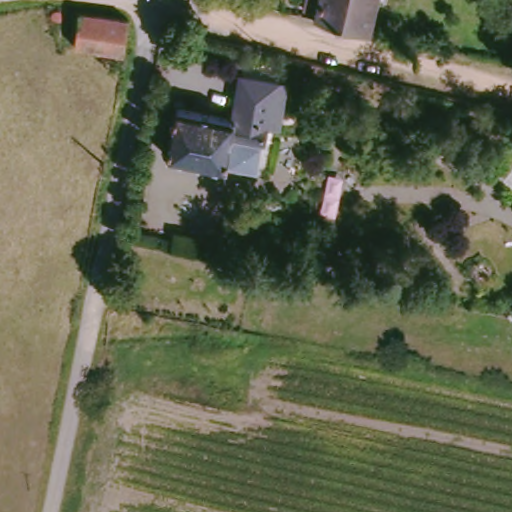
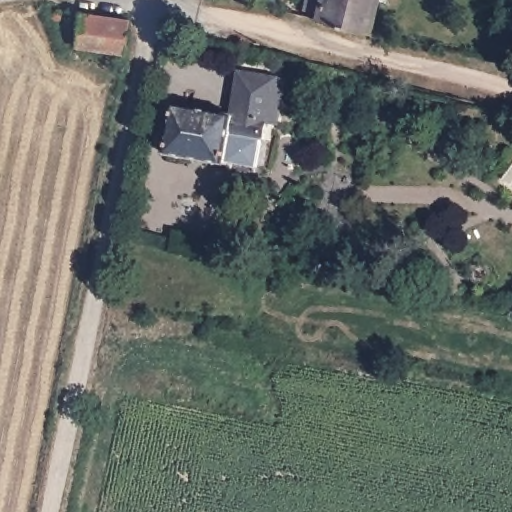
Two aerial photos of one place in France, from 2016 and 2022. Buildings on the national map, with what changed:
unchanged [(320,0),(376,0),(369,31),(316,18),(320,0)]
unchanged [(80,13),(130,19),(125,53),(75,46),(80,13)]
unchanged [(236,116),(242,75),(275,80),(265,141),(232,135),(227,165),(167,155),(176,106),(236,116)]
unchanged [(512,164),(512,183),(503,176),(512,164)]

